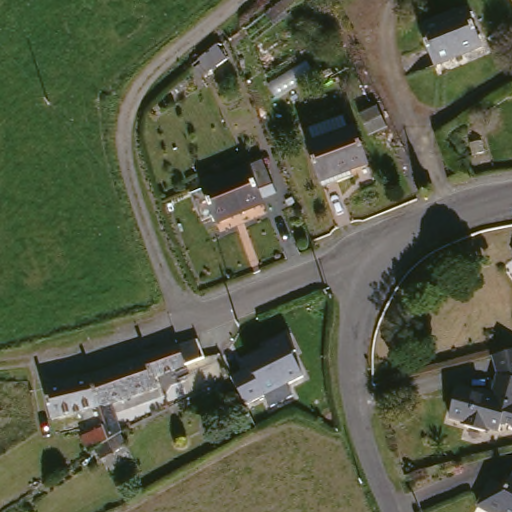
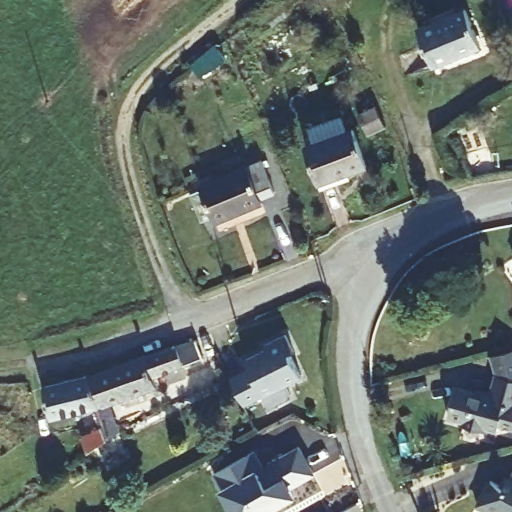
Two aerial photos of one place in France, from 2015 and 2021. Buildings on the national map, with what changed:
unchanged [(476,14),(488,49),(436,65),(424,30),(476,14)]
unchanged [(232,47),(240,56),(218,77),(209,67),(232,47)]
unchanged [(354,123),(373,176),(329,192),(310,139),(354,123)]
unchanged [(198,194),(211,189),(208,182),(270,157),(284,192),(269,198),(271,200),(224,220),(222,214),(209,220),(198,194)]
unchanged [(287,385),(294,397),(270,408),(264,396),(249,405),(233,377),(250,367),(244,357),(283,338),(302,376),(287,385)]
unchanged [(105,413),(104,407),(96,375),(151,357),(185,346),(190,367),(161,377),(163,387),(115,406),(124,442),(114,448),(113,445),(91,454),(88,438),(109,431),(105,413)]
unchanged [(512,350),(512,374),(503,372),(508,351),(512,350)]
unchanged [(497,393),(503,372),(512,374),(512,425),(496,421),(494,430),(472,424),(474,416),(457,412),(464,385),(497,393)]
unchanged [(96,375),(104,407),(56,417),(50,387),(96,375)]
new [(222,491),(224,489),(214,475),(258,452),(264,466),(300,446),(317,475),(292,485),(297,496),(268,512),(234,512),(222,491)]
unchanged [(511,488),(512,485),(512,488),(511,488)]
unchanged [(486,511),(494,491),(509,498),(512,492),(512,512),(488,512),(486,511)]

